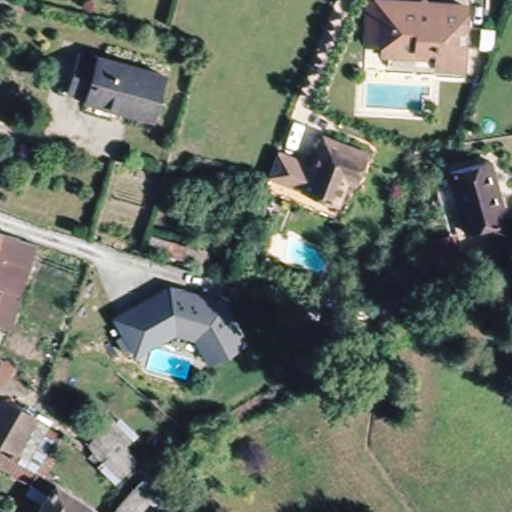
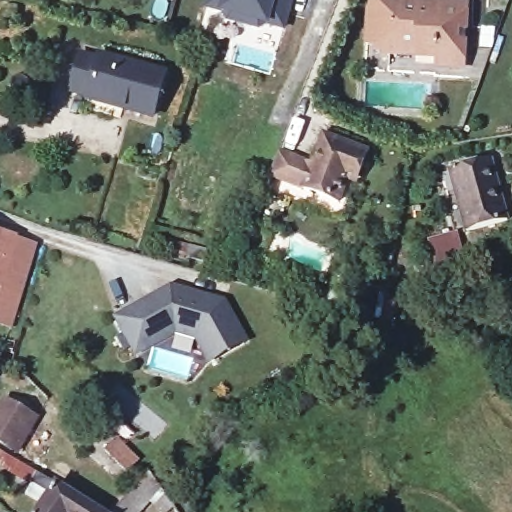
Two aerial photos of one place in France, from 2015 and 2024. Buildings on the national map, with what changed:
new [(270,25),(266,25),(259,29),(222,16),(202,5),(204,0),(294,0),(286,29),(270,25)]
unchanged [(436,57),(437,46),(438,39),(422,38),(421,46),(391,44),(392,35),(367,33),(369,0),(467,0),(464,59),(436,57)]
unchanged [(153,119),(88,100),(88,97),(70,91),(81,54),(99,59),(100,56),(165,74),(153,119)]
unchanged [(367,151),(355,182),(348,180),(340,202),(270,176),(270,175),(279,151),(312,164),(324,135),(367,151)]
unchanged [(508,221),(467,232),(450,169),(491,159),(508,221)]
unchanged [(0,229),(24,237),(44,243),(30,288),(18,330),(0,324),(0,229)]
unchanged [(202,261),(185,256),(184,259),(173,256),(174,251),(150,245),(153,236),(205,250),(202,261)]
unchanged [(465,266),(445,273),(435,245),(455,238),(465,266)]
unchanged [(244,341),(209,360),(195,336),(174,330),(139,354),(117,320),(169,287),(222,302),(244,341)]
unchanged [(0,353),(15,362),(4,383),(0,380),(0,353)]
unchanged [(0,416),(9,399),(43,419),(24,453),(0,440),(0,416)]
unchanged [(41,469),(21,457),(24,453),(43,419),(46,415),(57,421),(53,428),(62,433),(49,455),(59,461),(51,475),(41,469)]
unchanged [(133,439),(125,447),(138,460),(116,482),(101,466),(107,460),(91,444),(114,421),(133,439)]
unchanged [(34,484),(0,463),(0,448),(41,472),(34,484)]
unchanged [(49,504),(32,494),(44,473),(60,483),(109,512),(44,512),(49,504)]
unchanged [(181,509),(178,512),(167,512),(157,501),(147,512),(121,512),(155,475),(181,509)]

